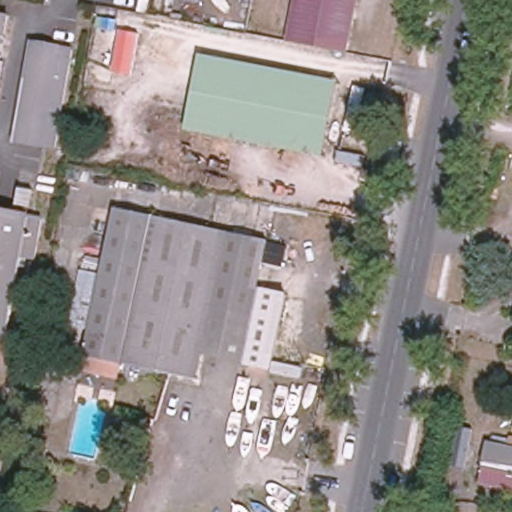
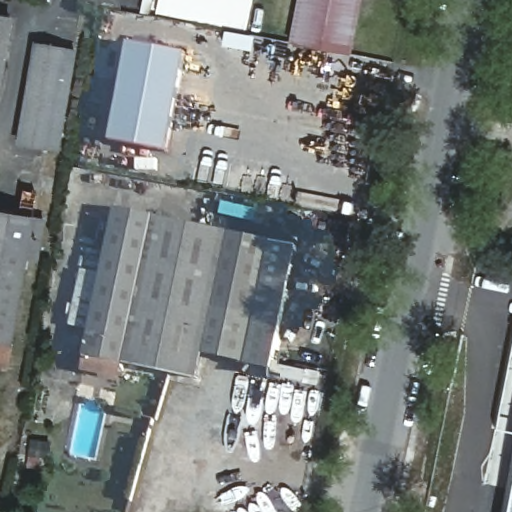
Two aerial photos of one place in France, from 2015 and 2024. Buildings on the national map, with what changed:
new [(249,49),(219,43),(223,26),(138,11),(140,0),(250,0),(244,30),(252,32),(249,49)]
unchanged [(317,46),(287,40),(296,0),(358,0),(348,53),(317,46)]
unchanged [(0,15),(8,16),(0,66),(0,15)]
unchanged [(44,147),(15,141),(32,41),(61,46),(44,147)]
new [(130,42),(187,53),(168,152),(112,141),(130,42)]
unchanged [(56,149),(44,147),(61,46),(74,49),(56,149)]
demolished [(320,154),(180,126),(195,53),(334,80),(320,154)]
unchanged [(202,354),(197,379),(84,356),(115,209),(227,233),(202,354)]
unchanged [(0,210),(29,215),(43,218),(36,260),(21,258),(2,367),(0,366),(0,210)]
unchanged [(268,364),(202,354),(227,233),(295,245),(268,364)]
new [(507,346),(512,322),(512,347),(507,346)]
demolished [(512,447),(512,470),(484,464),(488,442),(512,447)]
new [(512,453),(512,512),(500,512),(512,453)]

